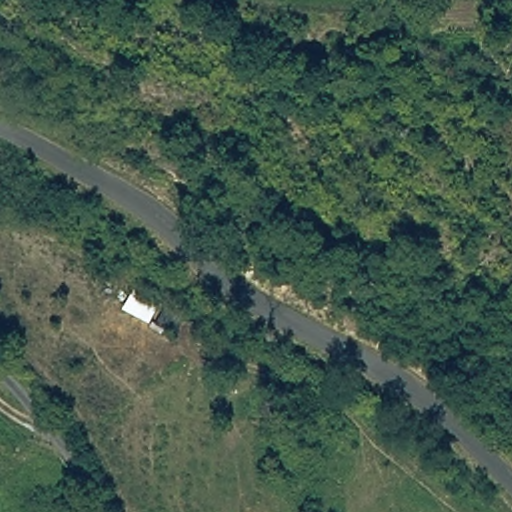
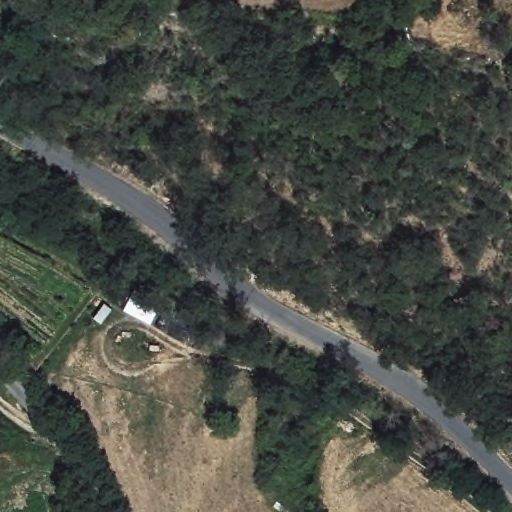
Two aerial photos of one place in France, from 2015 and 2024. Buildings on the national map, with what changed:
[]

